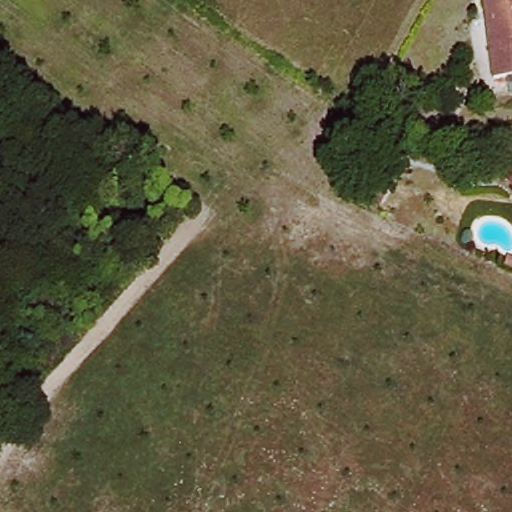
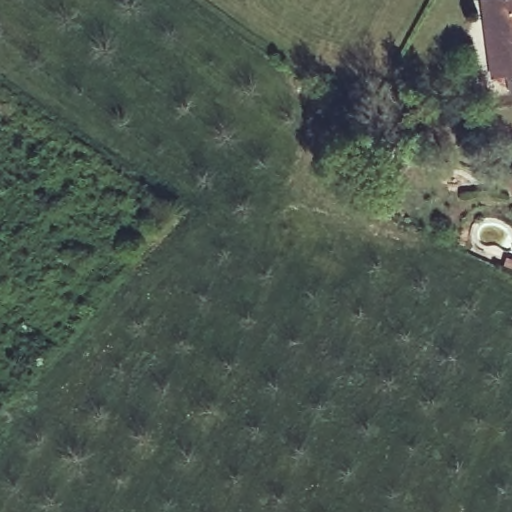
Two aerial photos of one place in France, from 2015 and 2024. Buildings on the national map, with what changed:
unchanged [(502,81),(487,3),(482,4),(481,0),(512,0),(512,79),(502,81)]
unchanged [(389,202),(375,195),(383,179),(397,185),(389,202)]

